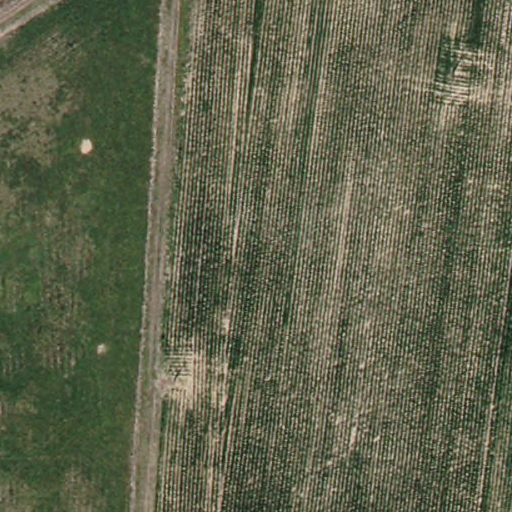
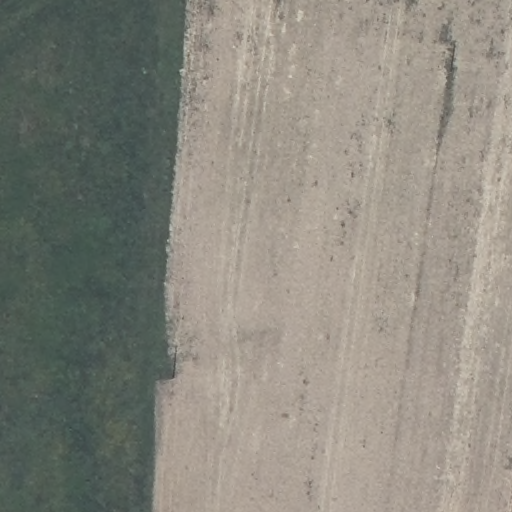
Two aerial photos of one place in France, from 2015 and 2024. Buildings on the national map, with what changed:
[]

